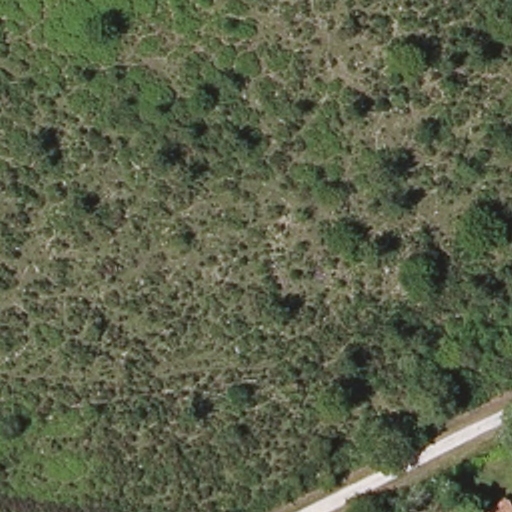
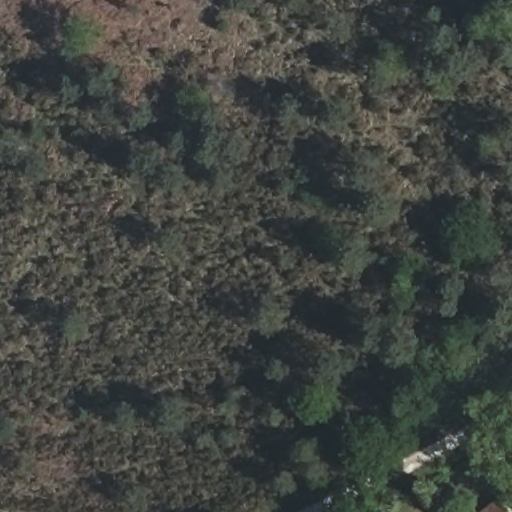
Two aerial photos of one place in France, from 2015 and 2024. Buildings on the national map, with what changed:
unchanged [(509,512),(484,512),(501,501),(509,512)]

